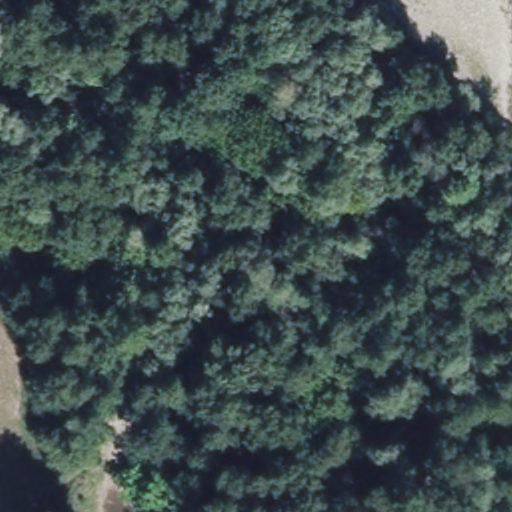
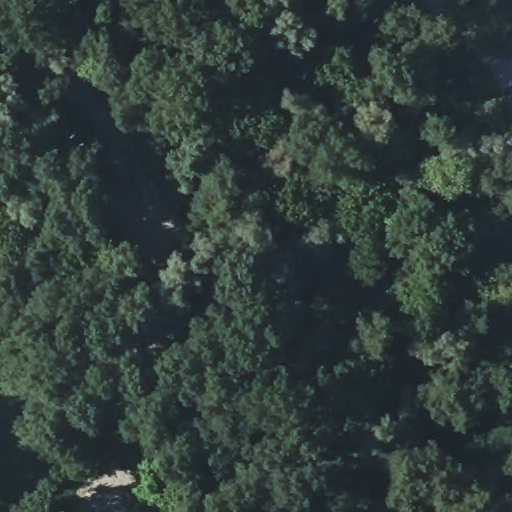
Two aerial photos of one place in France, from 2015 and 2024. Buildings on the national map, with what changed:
[]

